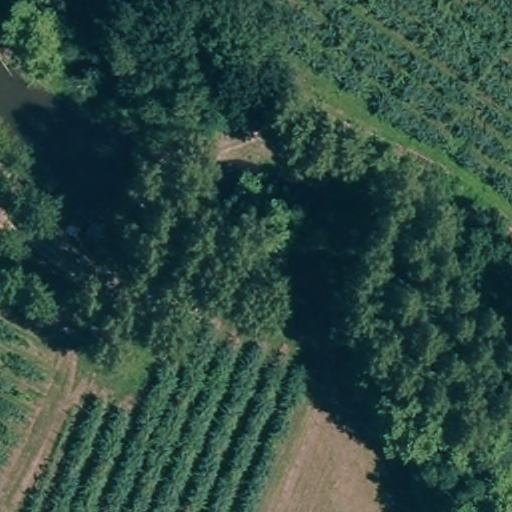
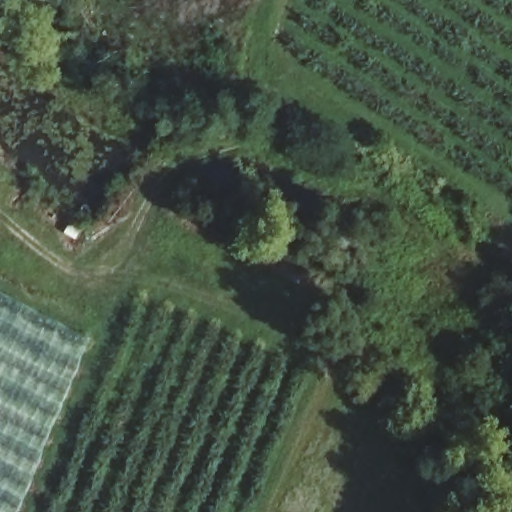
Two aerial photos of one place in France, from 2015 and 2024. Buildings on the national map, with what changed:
new [(89,337),(18,512),(0,512),(0,291),(89,337)]

